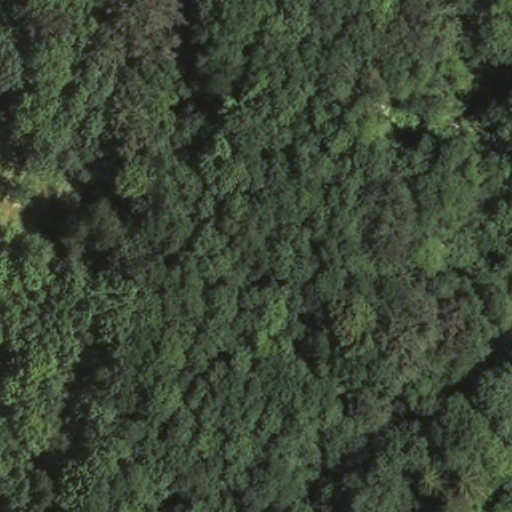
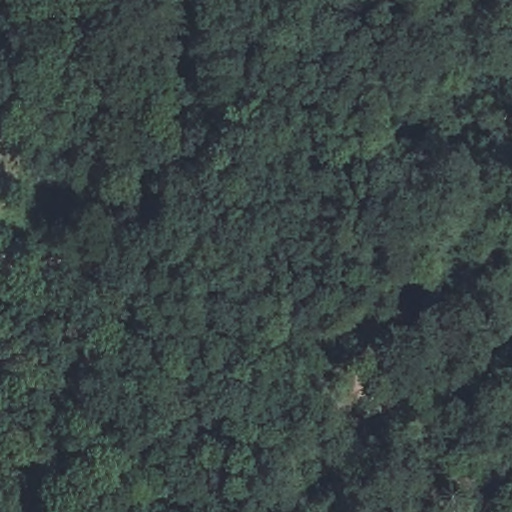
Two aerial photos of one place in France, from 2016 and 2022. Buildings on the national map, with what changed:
[]

